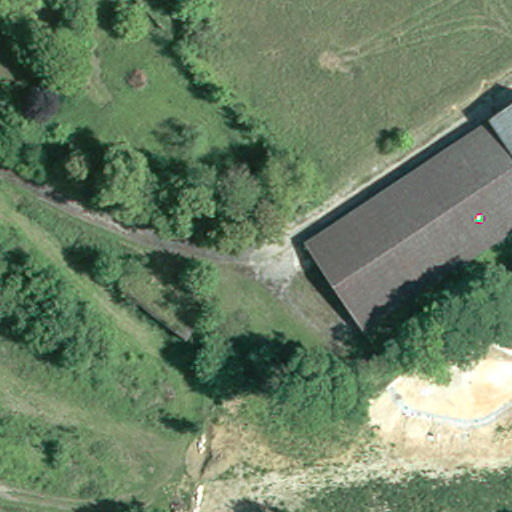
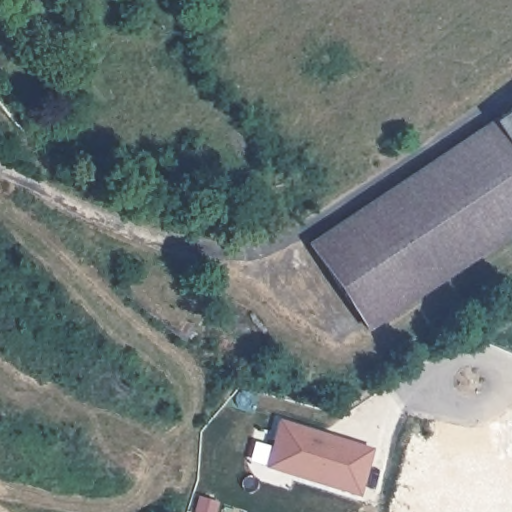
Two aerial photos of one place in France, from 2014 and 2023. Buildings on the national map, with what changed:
unchanged [(310,247),(356,215),(509,114),(512,111),(512,233),(365,329),(310,247)]
demolished [(243,221),(243,234),(232,234),(233,220),(243,221)]
new [(300,430),(300,432),(320,438),(320,436),(370,452),(356,497),(265,469),(279,423),(300,430)]

